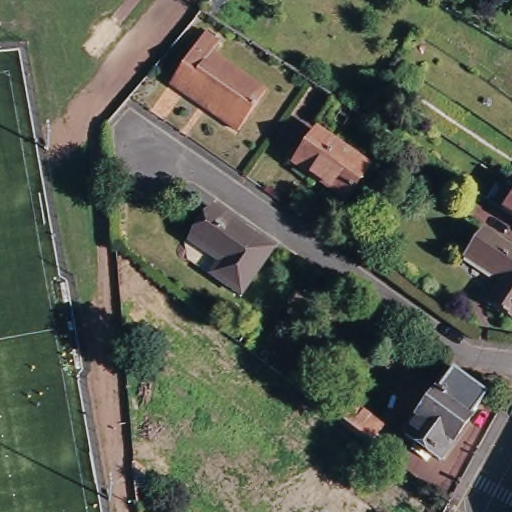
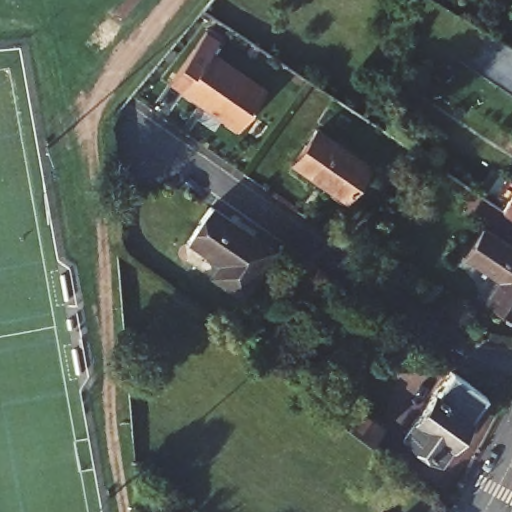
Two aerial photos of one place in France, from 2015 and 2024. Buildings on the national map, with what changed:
unchanged [(187,90),(173,81),(178,76),(210,30),(226,41),(216,54),(270,91),(243,129),(211,107),(204,102),(187,90)]
unchanged [(294,163),(318,130),(371,166),(348,199),(294,163)]
unchanged [(504,216),(512,203),(512,222),(504,216)]
unchanged [(243,297),(192,263),(189,246),(216,208),(276,250),(243,297)]
unchanged [(486,228),(512,245),(512,317),(491,303),(506,280),(468,255),(486,228)]
unchanged [(404,431),(451,366),(485,390),(439,456),(404,431)]
unchanged [(373,442),(342,418),(329,408),(339,395),(351,405),(383,428),(373,442)]

